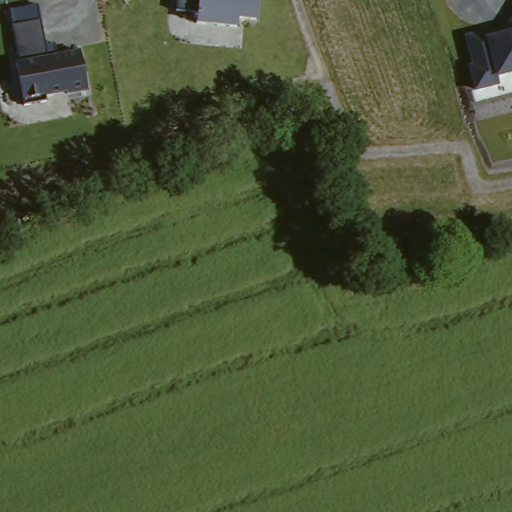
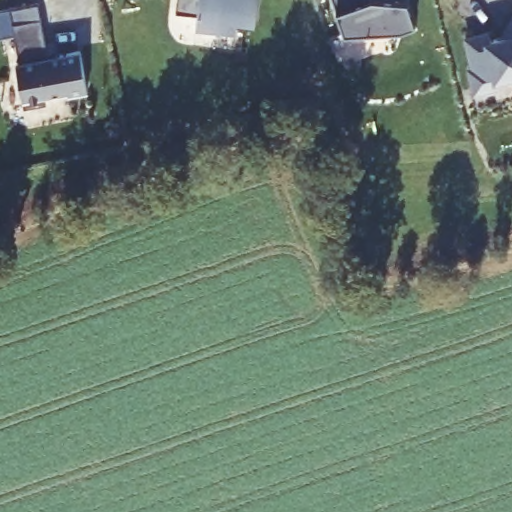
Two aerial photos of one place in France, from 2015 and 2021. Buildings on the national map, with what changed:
unchanged [(175,0),(262,0),(259,27),(242,24),(242,35),(198,31),(198,14),(173,15),(175,0)]
new [(336,11),(333,0),(389,0),(406,1),(415,22),(400,27),(344,32),(336,11)]
unchanged [(40,2),(48,52),(80,52),(85,91),(22,99),(7,4),(40,2)]
unchanged [(465,67),(470,66),(463,36),(504,27),(512,14),(512,74),(497,78),(498,86),(473,92),(465,67)]

